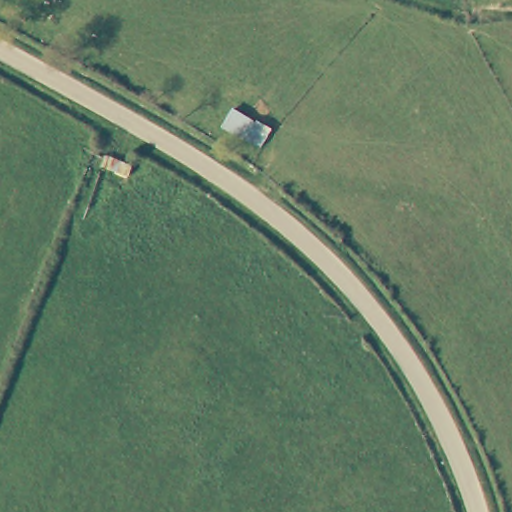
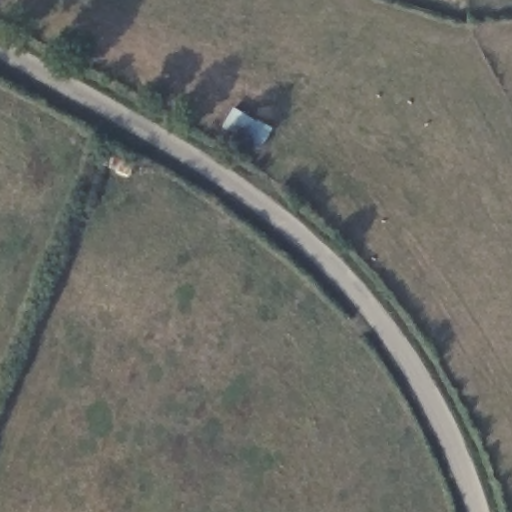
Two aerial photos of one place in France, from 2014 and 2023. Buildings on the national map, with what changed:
unchanged [(224,129),(236,109),(274,132),(264,151),(224,129)]

